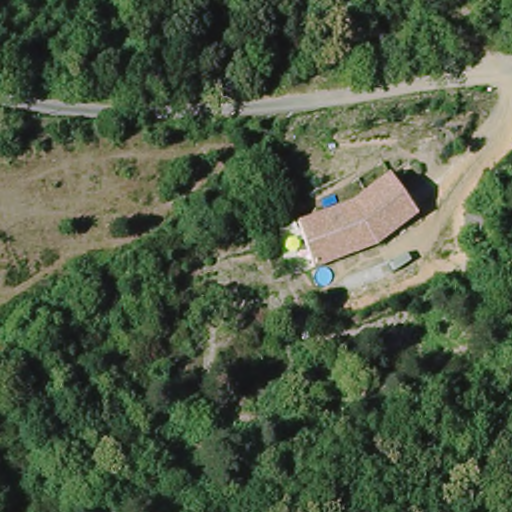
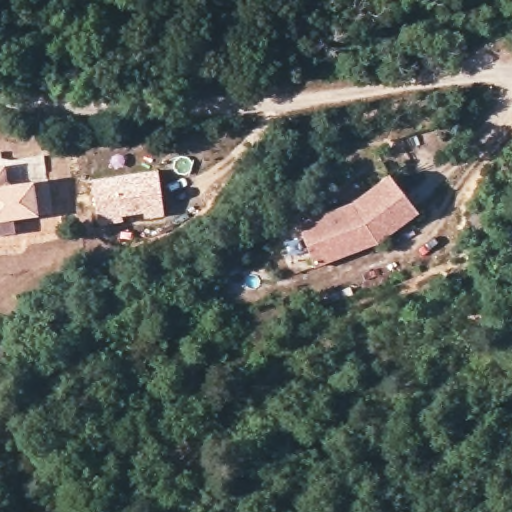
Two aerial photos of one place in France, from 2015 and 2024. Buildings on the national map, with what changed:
unchanged [(452,98),(461,101),(466,119),(458,118),(452,98)]
new [(53,213),(13,218),(15,233),(0,235),(0,166),(3,165),(6,183),(46,179),(53,213)]
new [(93,177),(158,169),(166,215),(98,225),(93,177)]
unchanged [(349,203),(385,174),(417,212),(376,247),(312,270),(296,223),(349,203)]
unchanged [(314,336),(301,340),(296,325),(309,322),(314,336)]

